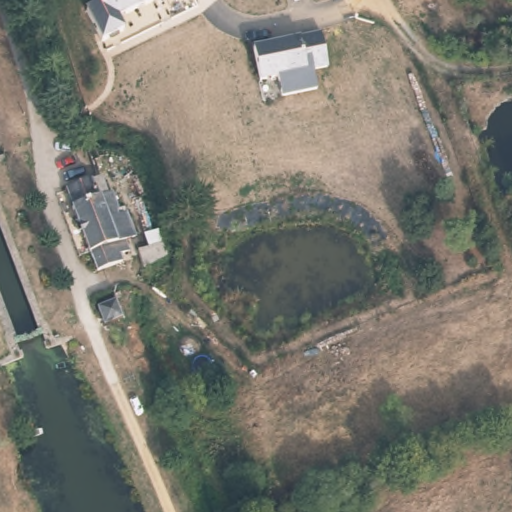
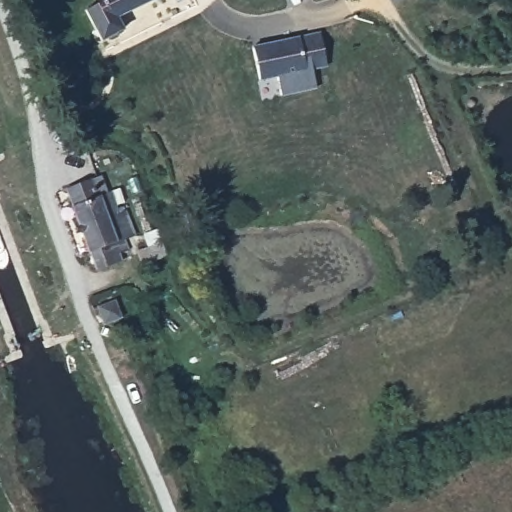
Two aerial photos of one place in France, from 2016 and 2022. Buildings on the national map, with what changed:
unchanged [(116,14),(123,27),(101,38),(86,7),(101,0),(146,0),(116,14)]
unchanged [(322,34),(328,67),(308,71),(312,88),(281,94),(277,76),(262,80),(255,46),(322,34)]
unchanged [(149,193),(128,201),(111,165),(135,155),(149,193)]
unchanged [(98,195),(111,190),(119,209),(127,210),(134,232),(126,237),(129,248),(121,252),(121,259),(99,269),(71,208),(74,205),(66,190),(90,179),(98,195)]
unchanged [(168,251),(154,257),(150,246),(165,240),(168,251)]
unchanged [(118,295),(125,316),(105,321),(97,302),(118,295)]

